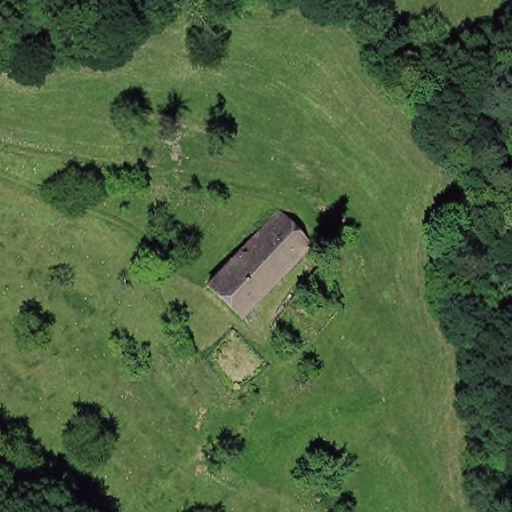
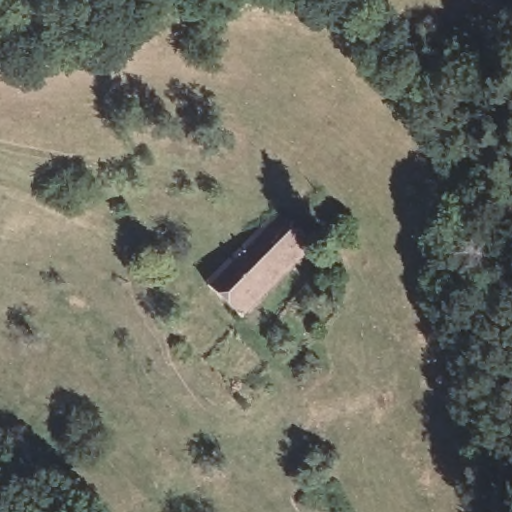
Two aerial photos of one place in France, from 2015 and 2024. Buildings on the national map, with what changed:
unchanged [(301,261),(235,334),(198,294),(269,225),(301,261)]

